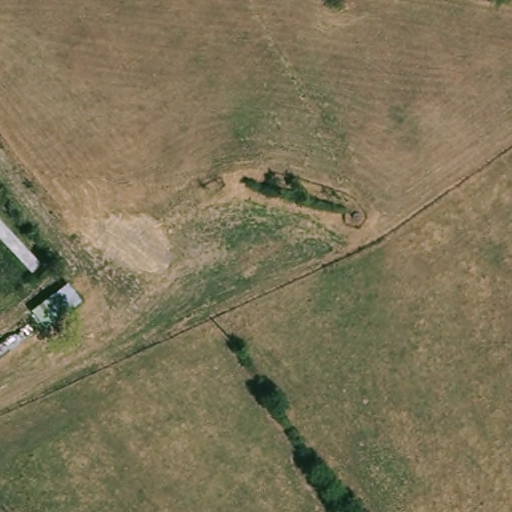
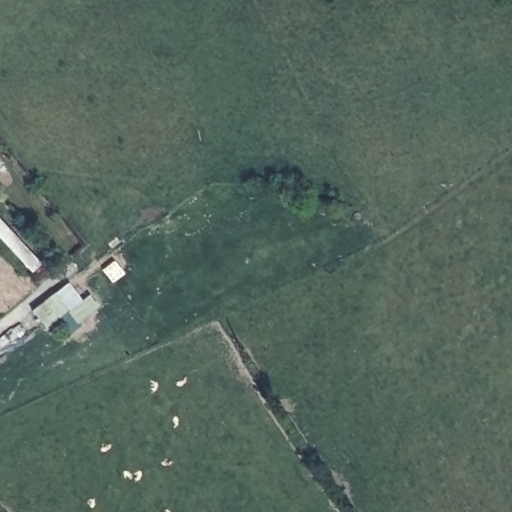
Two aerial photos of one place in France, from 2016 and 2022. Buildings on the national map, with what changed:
unchanged [(70,279),(85,300),(47,331),(32,312),(70,279)]

